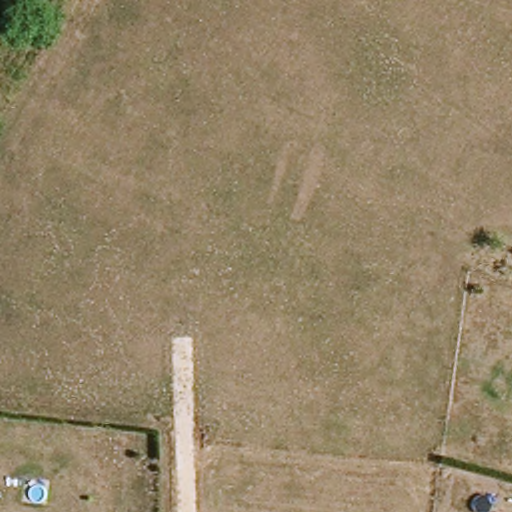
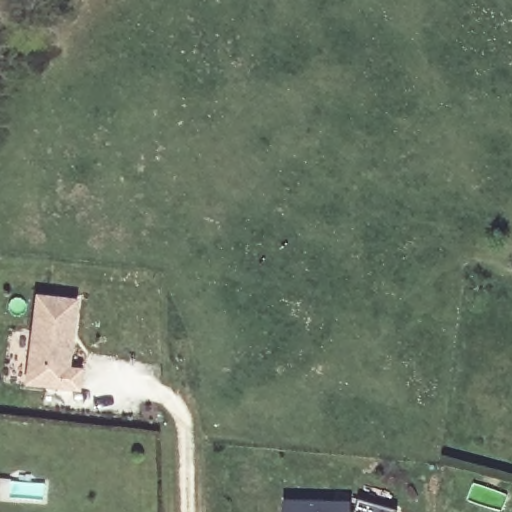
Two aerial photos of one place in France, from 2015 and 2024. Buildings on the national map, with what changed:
new [(37,294),(78,298),(74,334),(71,334),(70,340),(73,341),(70,367),(83,368),(80,388),(27,383),(37,294)]
new [(356,499),(397,512),(283,512),(283,501),(355,502),(356,499)]

